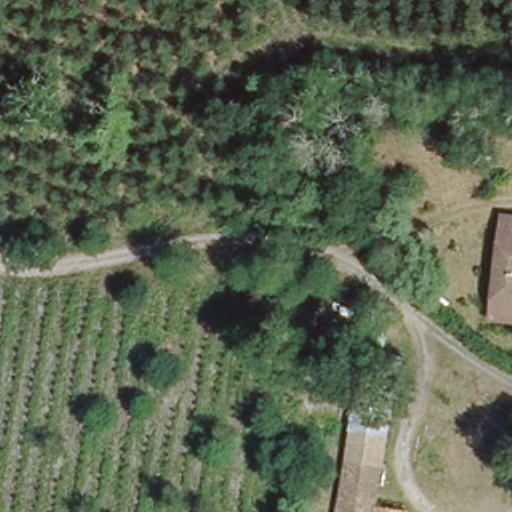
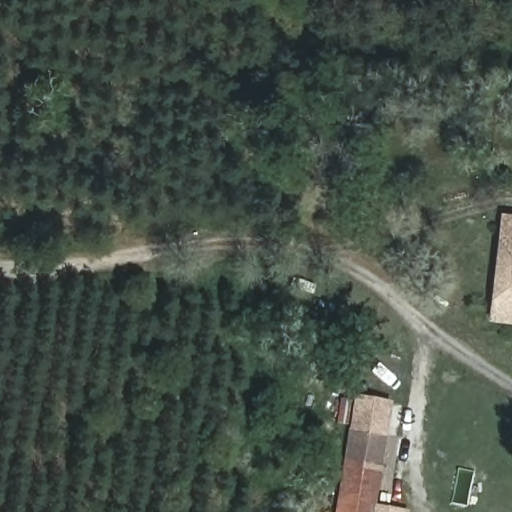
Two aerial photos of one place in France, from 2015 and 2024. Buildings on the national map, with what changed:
unchanged [(490,316),(496,235),(498,213),(512,213),(512,317),(490,316)]
new [(352,429),(358,396),(391,401),(384,434),(352,429)]
unchanged [(384,434),(374,505),(373,512),(337,512),(352,429),(384,434)]
unchanged [(404,512),(373,512),(374,505),(404,512)]

